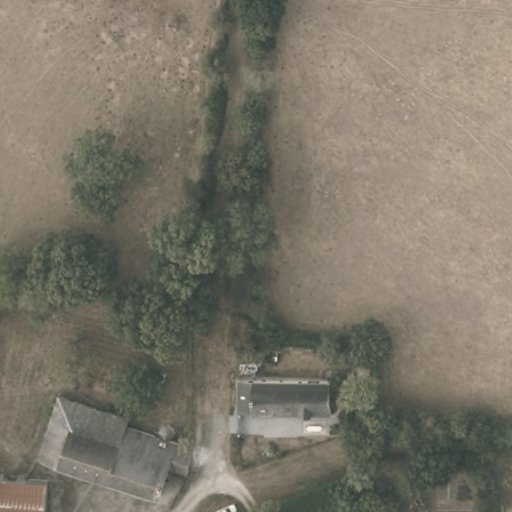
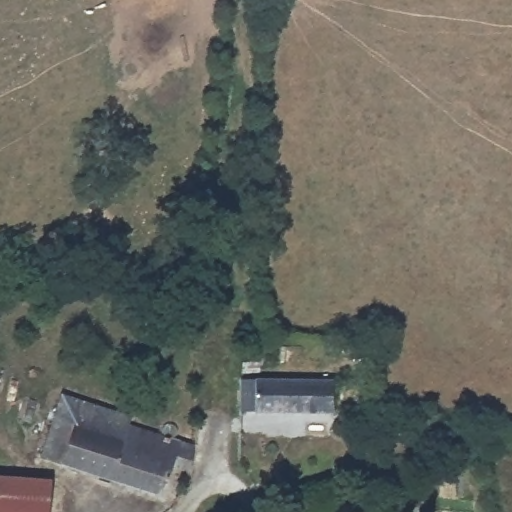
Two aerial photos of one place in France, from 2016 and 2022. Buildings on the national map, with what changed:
unchanged [(273,345),(271,351),(265,355),(258,352),(255,346),(257,339),(262,338),(267,339),(273,345)]
unchanged [(239,379),(334,378),(332,410),(238,409),(239,379)]
unchanged [(168,463),(158,494),(40,457),(61,393),(129,414),(129,425),(156,433),(166,424),(173,423),(179,428),(178,439),(191,443),(188,469),(168,463)]
unchanged [(47,512),(0,512),(0,476),(49,479),(47,512)]

